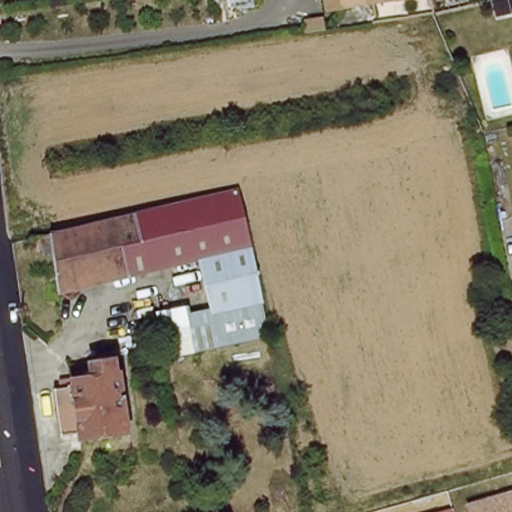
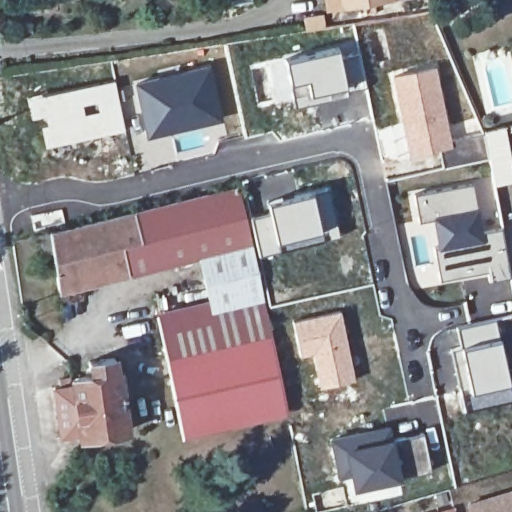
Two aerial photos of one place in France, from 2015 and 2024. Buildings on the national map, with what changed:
new [(338,46),(346,87),(315,95),(316,101),(291,106),(281,56),(338,46)]
new [(212,64),(224,121),(146,138),(134,81),(212,64)]
new [(435,64),(452,147),(406,156),(391,74),(435,64)]
new [(115,78),(125,130),(44,147),(37,118),(31,119),(26,97),(115,78)]
new [(505,125),(512,163),(512,181),(494,184),(482,130),(505,125)]
unchanged [(199,254),(157,263),(154,247),(144,248),(135,207),(238,182),(269,329),(217,339),(199,254)]
new [(473,183),(477,207),(433,216),(434,219),(431,219),(418,222),(413,192),(473,183)]
unchanged [(63,282),(51,227),(131,208),(135,207),(144,248),(154,247),(157,263),(63,282)]
new [(434,219),(433,216),(477,207),(483,231),(484,238),(484,239),(483,241),(435,250),(431,219),(434,219)]
new [(500,228),(509,276),(499,277),(499,275),(490,277),(489,271),(483,241),(484,238),(483,231),(500,228)]
new [(483,241),(483,239),(484,239),(489,271),(439,280),(435,250),(483,241)]
unchanged [(212,317),(216,333),(217,339),(269,329),(270,337),(166,358),(156,313),(186,305),(190,312),(210,308),(212,317)]
new [(340,309),(355,381),(319,388),(312,354),(299,356),(291,318),(340,309)]
new [(494,318),(512,397),(512,399),(465,410),(461,393),(466,392),(455,326),(494,318)]
new [(182,437),(166,358),(270,337),(286,417),(182,437)]
unchanged [(62,389),(84,386),(82,377),(100,373),(98,359),(123,356),(133,427),(92,434),(91,430),(68,432),(62,389)]
new [(390,424),(393,437),(423,433),(430,471),(352,490),(349,476),(338,479),(330,438),(390,424)]
new [(343,486),(347,505),(319,510),(316,494),(343,486)]
unchanged [(470,512),(468,504),(512,491),(512,512),(470,512)]
unchanged [(455,512),(444,512),(454,509),(455,512)]

